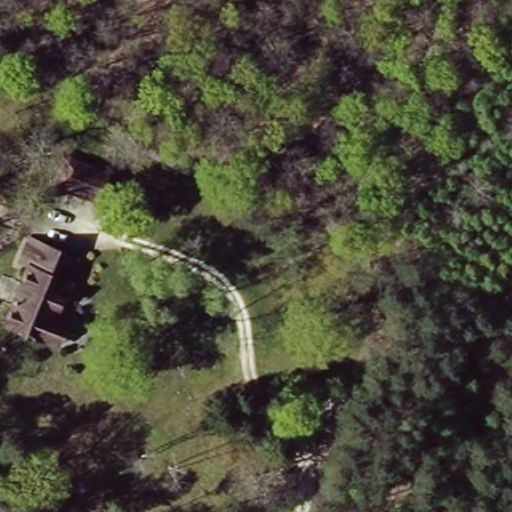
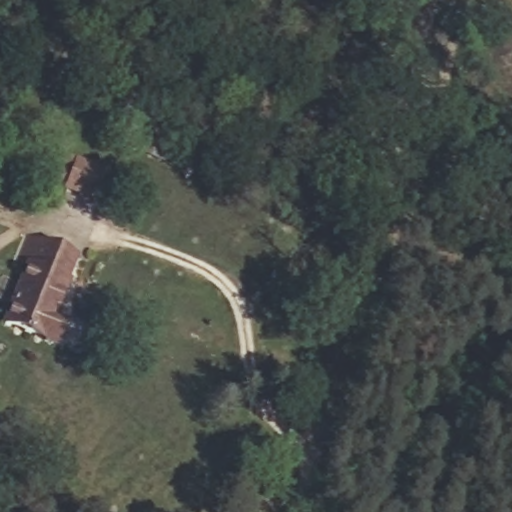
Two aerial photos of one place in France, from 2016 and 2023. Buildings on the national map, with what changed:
unchanged [(100,205),(64,193),(75,160),(112,172),(100,205)]
unchanged [(80,254),(60,318),(70,321),(61,348),(0,328),(30,237),(80,254)]

